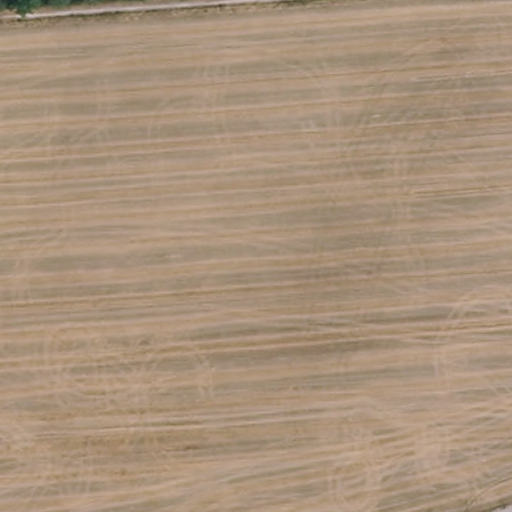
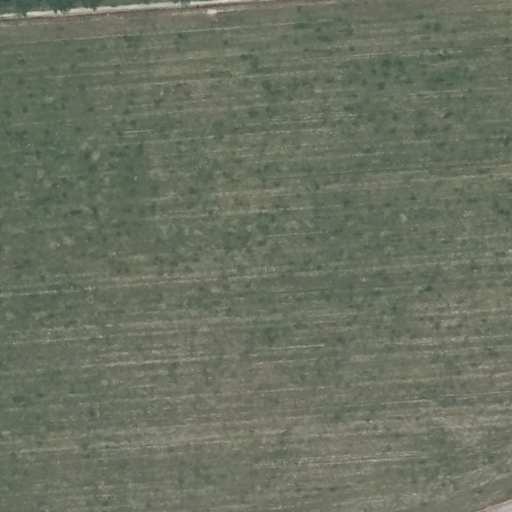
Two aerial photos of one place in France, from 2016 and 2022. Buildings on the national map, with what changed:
[]

